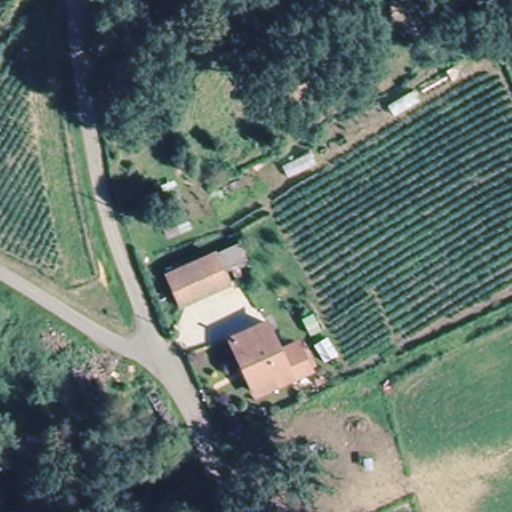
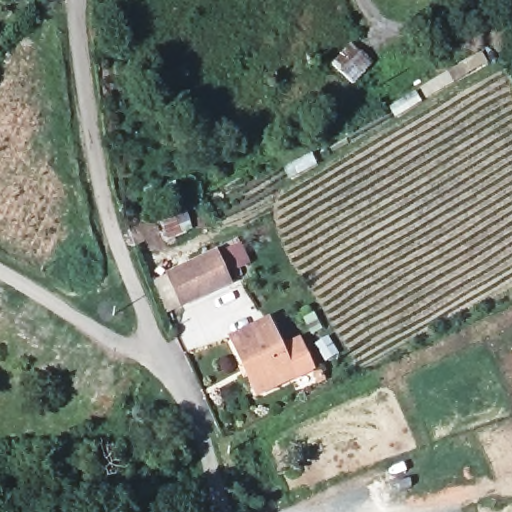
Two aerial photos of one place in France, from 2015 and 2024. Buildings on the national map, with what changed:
unchanged [(315,78),(333,55),(353,69),(335,92),(315,78)]
unchanged [(164,274),(214,255),(225,285),(175,303),(164,274)]
unchanged [(265,325),(274,349),(297,340),(301,351),(309,375),(252,395),(232,338),(265,325)]

